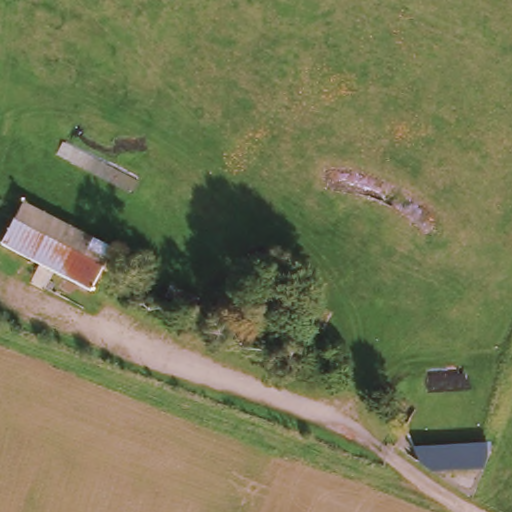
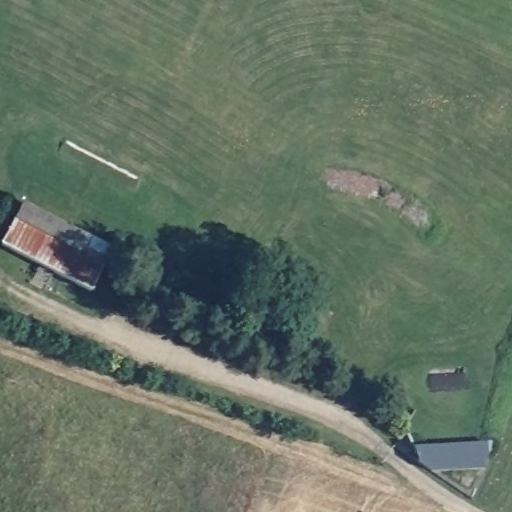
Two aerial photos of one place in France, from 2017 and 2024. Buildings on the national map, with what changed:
unchanged [(111,246),(90,288),(0,242),(24,200),(111,246)]
unchanged [(300,341),(326,352),(319,365),(294,352),(300,341)]
unchanged [(477,439),(480,465),(416,471),(413,446),(477,439)]

